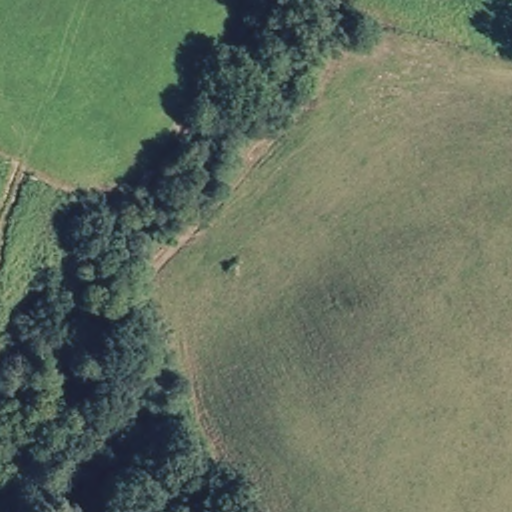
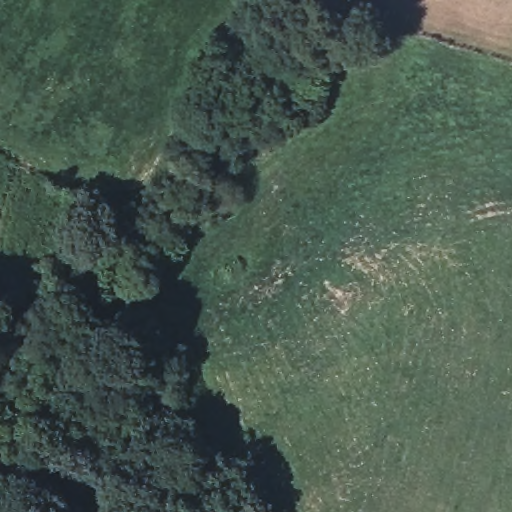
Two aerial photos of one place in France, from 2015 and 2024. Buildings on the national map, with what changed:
[]

